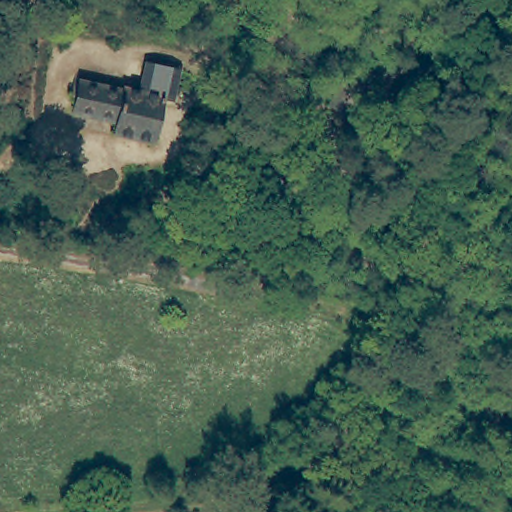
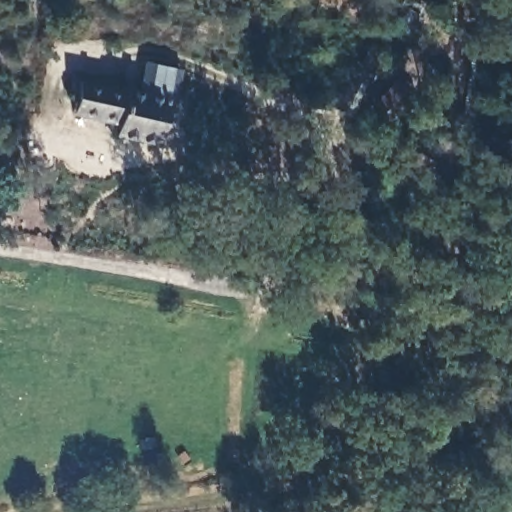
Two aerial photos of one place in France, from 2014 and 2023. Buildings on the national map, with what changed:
unchanged [(93,64),(152,75),(158,48),(193,55),(187,82),(179,81),(169,128),(125,119),(128,106),(86,98),(93,64)]

